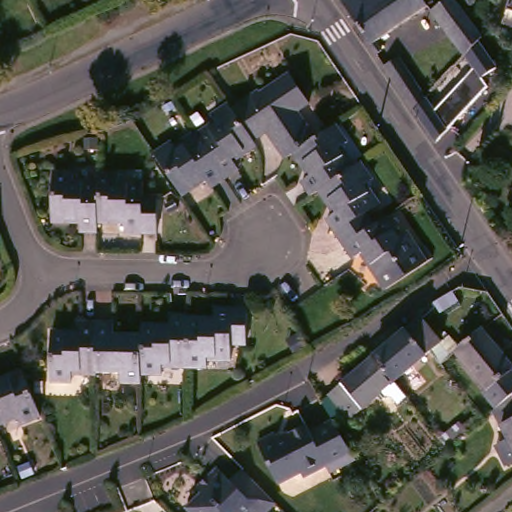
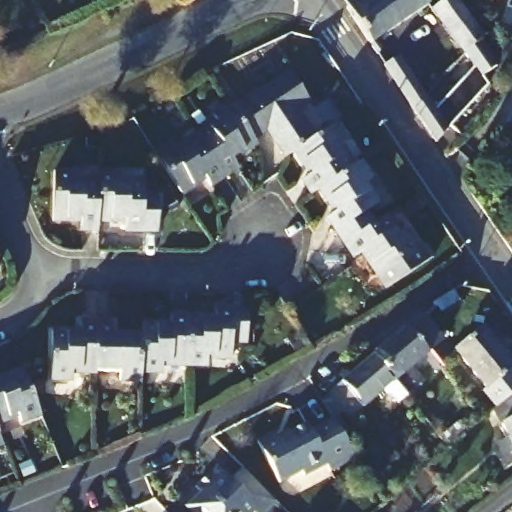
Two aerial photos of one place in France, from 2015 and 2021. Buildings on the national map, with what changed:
unchanged [(344,0),(427,0),(432,8),(381,42),(388,51),(381,55),(344,0)]
unchanged [(435,13),(453,0),(457,0),(487,41),(470,58),(435,13)]
unchanged [(470,58),(487,41),(503,65),(486,77),(493,85),(438,133),(420,112),(390,68),(404,59),(431,100),(476,65),(470,58)]
unchanged [(237,104),(261,88),(265,92),(296,72),(314,98),(300,106),(319,135),(297,149),(291,153),(273,127),(258,136),(237,104)]
unchanged [(207,140),(202,134),(222,121),(217,114),(236,102),(237,104),(258,136),(262,141),(238,157),(243,165),(230,174),(207,140)]
unchanged [(306,177),(313,172),(297,149),(319,135),(338,122),(350,140),(345,143),(357,164),(325,186),(316,192),(306,177)]
unchanged [(175,175),(160,152),(178,140),(182,147),(202,134),(207,140),(230,174),(215,184),(210,176),(186,191),(175,175)]
unchanged [(349,242),(331,216),(339,209),(325,186),(357,164),(360,162),(364,159),(376,178),(371,182),(384,201),(370,210),(378,222),(349,242)]
unchanged [(119,173),(142,173),(142,185),(142,200),(159,200),(157,234),(124,233),(125,225),(97,224),(98,182),(98,176),(119,176),(119,173)]
unchanged [(96,235),(79,234),(79,223),(51,222),(53,175),(72,176),(73,183),(98,182),(97,224),(96,235)]
unchanged [(403,231),(409,228),(430,260),(391,286),(367,250),(358,255),(349,242),(378,222),(385,218),(391,213),(403,231)]
unchanged [(443,302),(458,293),(464,303),(445,315),(438,305),(443,302)]
unchanged [(191,359),(192,313),(221,314),(221,306),(251,307),(250,341),(236,340),(236,355),(211,355),(211,362),(191,362),(191,359)]
unchanged [(146,331),(147,322),(175,322),(176,313),(192,313),(191,359),(191,362),(167,361),(166,368),(146,368),(146,331)]
unchanged [(385,354),(432,315),(452,338),(405,380),(385,354)]
unchanged [(100,368),(100,371),(78,370),(77,376),(55,375),(56,330),(84,329),(85,321),(101,322),(100,368)]
unchanged [(146,368),(145,376),(124,376),(123,369),(100,368),(101,322),(120,322),(119,331),(146,331),(146,368)]
unchanged [(492,334),(512,360),(512,407),(510,408),(505,412),(491,394),(495,391),(466,354),(492,334)]
unchanged [(360,418),(338,391),(385,354),(405,380),(360,418)]
unchanged [(0,425),(0,384),(28,373),(41,407),(45,417),(24,425),(20,418),(1,427),(0,425)]
unchanged [(505,412),(510,408),(512,407),(512,430),(503,413),(505,412)]
unchanged [(364,453),(338,468),(335,462),(313,475),(310,470),(290,482),(266,441),(283,431),(287,437),(315,421),(319,427),(341,414),(350,429),(365,453),(364,453)]
unchanged [(1,427),(4,434),(0,435),(0,425),(1,427)]
unchanged [(463,427),(470,436),(452,450),(445,441),(463,427)]
unchanged [(512,445),(512,458),(506,448),(512,445)]
unchanged [(201,490),(196,485),(218,465),(231,479),(244,467),(248,471),(262,486),(277,502),(266,512),(194,512),(187,504),(201,490)]

